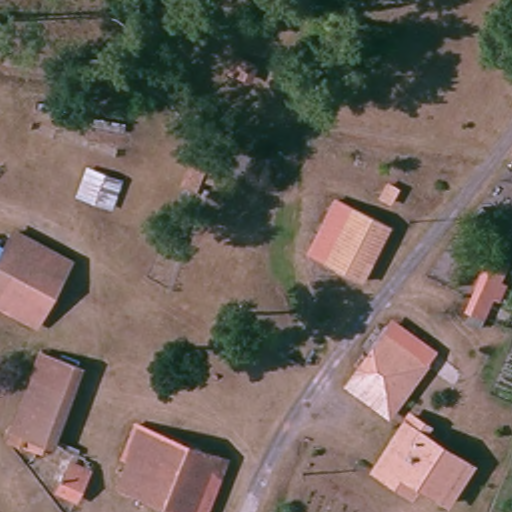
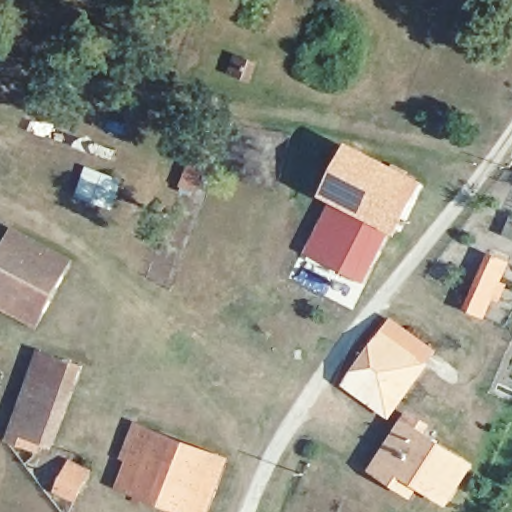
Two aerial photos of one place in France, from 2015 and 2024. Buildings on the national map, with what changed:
unchanged [(211,76),(217,57),(234,62),(228,81),(211,76)]
new [(398,230),(396,229),(346,203),(343,208),(322,196),(351,141),(427,182),(398,230)]
unchanged [(76,202),(86,169),(120,179),(111,211),(76,202)]
unchanged [(370,283),(360,279),(318,256),(346,203),(396,229),(398,230),(370,283)]
unchanged [(0,304),(0,257),(9,240),(14,230),(72,260),(67,271),(39,323),(0,304)]
unchanged [(511,284),(503,303),(494,300),(486,322),(463,313),(488,254),(512,261),(512,262),(502,281),(511,284)]
unchanged [(349,385),(359,371),(393,323),(434,353),(399,400),(389,414),(349,385)]
unchanged [(41,350),(61,358),(74,363),(45,440),(26,432),(12,427),(41,350)]
unchanged [(447,500),(400,466),(393,476),(377,464),(409,419),(414,413),(415,412),(431,423),(426,431),(473,465),(447,500)]
unchanged [(125,491),(149,430),(225,461),(205,512),(177,512),(125,491)]
unchanged [(56,476),(62,460),(81,467),(75,483),(56,476)]
unchanged [(416,494),(399,481),(406,471),(423,484),(416,494)]

